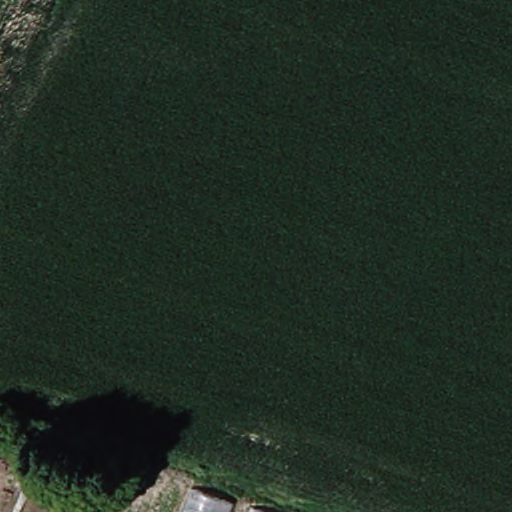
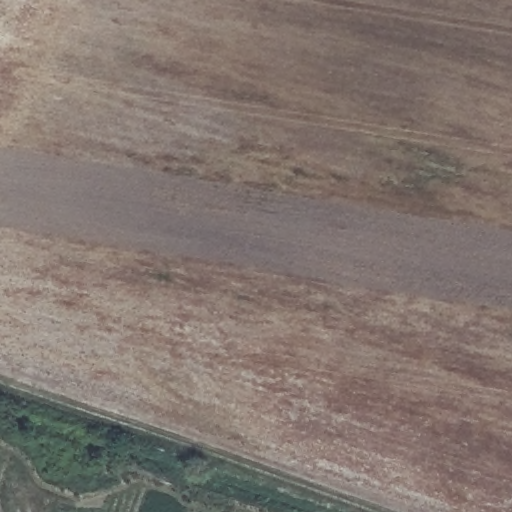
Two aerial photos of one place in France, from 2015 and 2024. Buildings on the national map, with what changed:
demolished [(175,512),(184,486),(225,501),(221,512),(175,512)]
unchanged [(261,512),(244,512),(246,505),(261,512)]

